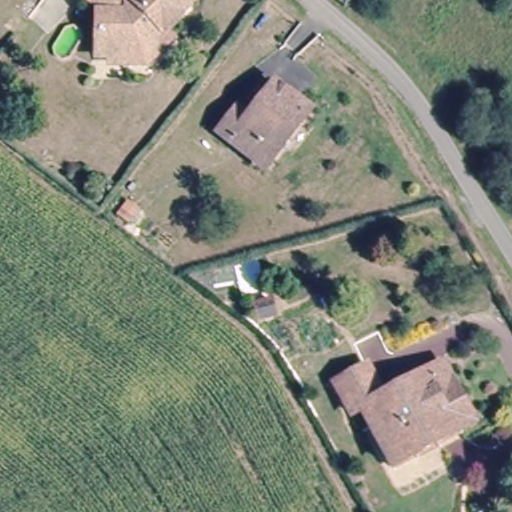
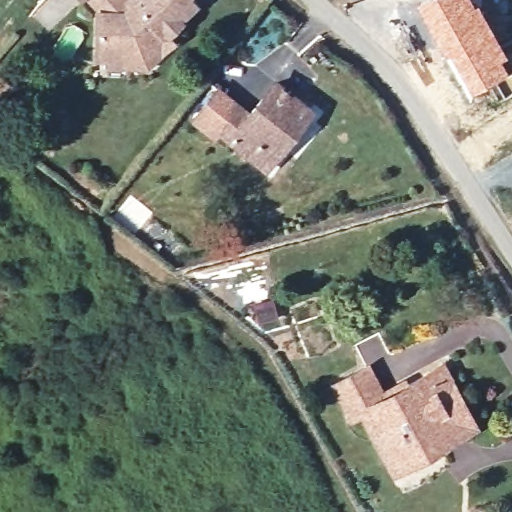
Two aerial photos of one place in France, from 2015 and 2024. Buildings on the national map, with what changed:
unchanged [(115,59),(109,53),(89,52),(87,0),(176,0),(180,5),(156,24),(166,37),(149,50),(135,61),(115,59)]
new [(475,0),(484,14),(505,52),(500,55),(508,70),(468,92),(439,47),(413,1),(415,0),(475,0)]
unchanged [(222,133),(209,120),(232,96),(244,107),(274,75),(303,101),(263,146),(251,157),(222,133)]
unchanged [(0,98),(0,85),(6,90),(0,98)]
unchanged [(394,473),(360,413),(359,412),(377,404),(429,377),(441,370),(476,430),(464,436),(438,450),(418,461),(394,473)]
unchanged [(369,372),(385,399),(377,404),(359,412),(360,413),(350,419),(334,390),(369,372)]

